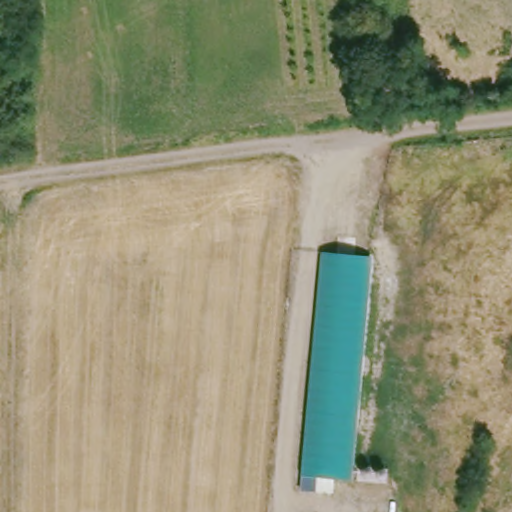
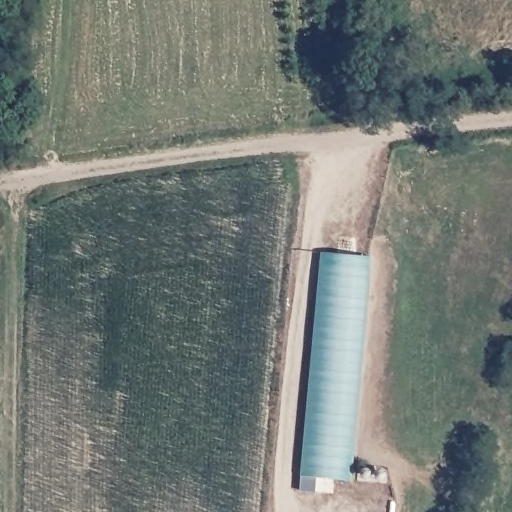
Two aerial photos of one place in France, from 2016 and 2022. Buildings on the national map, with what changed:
unchanged [(317,477),(316,492),(301,491),(302,476),(322,252),(372,257),(353,481),(317,477)]

